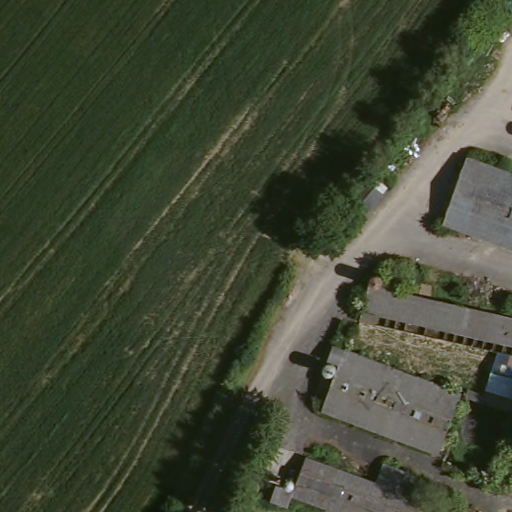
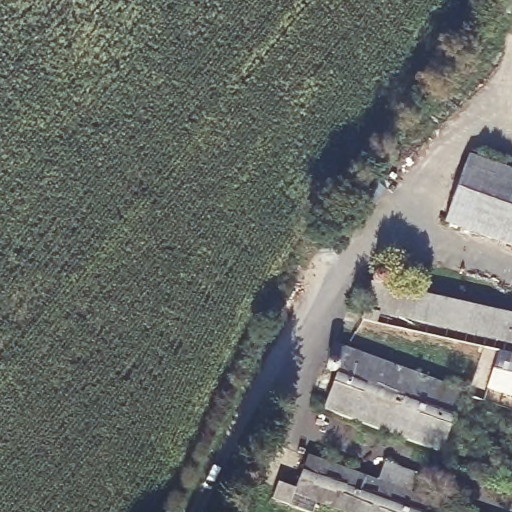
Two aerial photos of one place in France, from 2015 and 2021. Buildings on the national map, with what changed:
unchanged [(484,159),(512,168),(512,243),(461,225),(484,159)]
unchanged [(393,185),(396,189),(406,200),(377,224),(373,219),(362,209),(393,185)]
unchanged [(383,288),(512,318),(512,347),(396,320),(377,313),(383,288)]
unchanged [(341,366),(329,362),(335,348),(347,352),(347,351),(462,392),(441,453),(325,408),(341,366)]
unchanged [(391,468),(424,481),(416,499),(452,512),(334,512),(299,499),(314,462),(384,487),(391,468)]
unchanged [(294,512),(278,512),(275,511),(282,493),(299,499),(294,512)]

